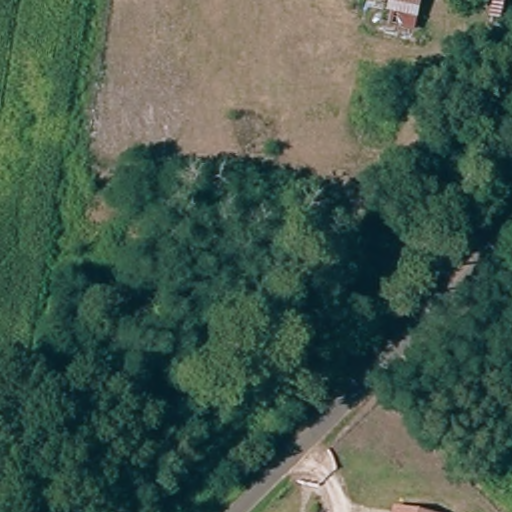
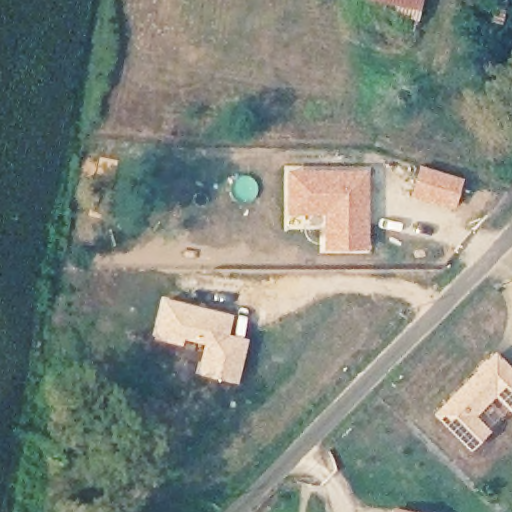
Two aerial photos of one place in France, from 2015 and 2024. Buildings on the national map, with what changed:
new [(394,15),(395,6),(371,0),(422,0),(420,10),(413,32),(394,15)]
new [(419,164),(464,177),(455,211),(409,198),(419,164)]
new [(285,166),(371,167),(371,250),(322,251),(321,216),(285,216),(285,166)]
new [(163,297),(233,313),(229,333),(249,337),(237,383),(196,373),(203,344),(181,338),(180,343),(153,336),(163,297)]
new [(512,412),(493,396),(475,415),(490,430),(471,451),(432,413),(495,352),(512,369),(512,412)]

